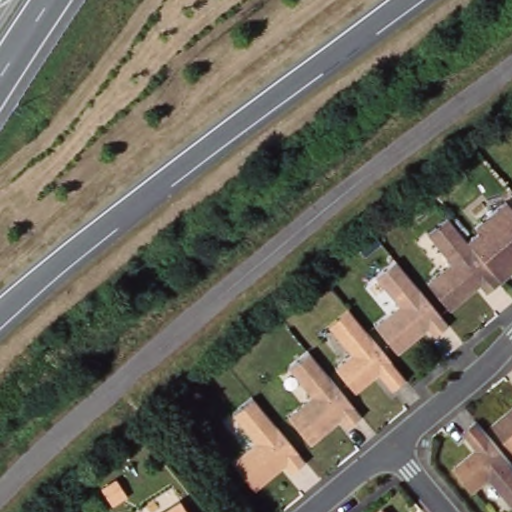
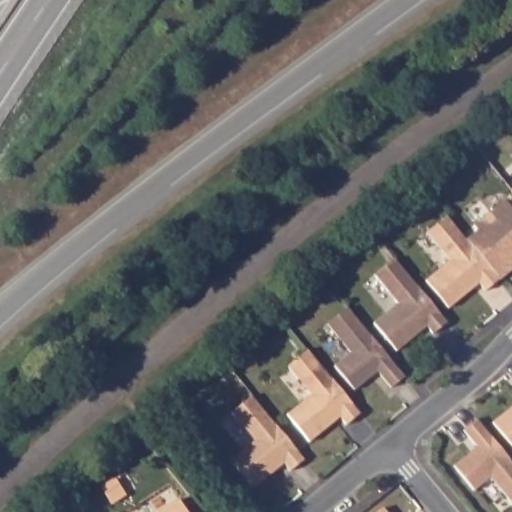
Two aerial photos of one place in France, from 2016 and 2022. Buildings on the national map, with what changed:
unchanged [(476,221),(507,199),(512,205),(512,267),(502,275),(470,236),(481,227),(476,221)]
unchanged [(454,307),(431,280),(456,260),(432,231),(452,215),(470,236),(502,275),(505,278),(491,290),(485,282),(480,285),(454,307)]
unchanged [(402,350),(380,323),(403,303),(380,274),(400,258),(408,267),(452,321),(439,332),(432,324),(428,328),(402,350)]
unchanged [(347,303),(405,372),(391,383),(377,366),(354,386),(335,362),(351,348),(327,320),(347,303)]
unchanged [(310,443),(287,416),(311,396),(287,367),(307,351),(313,358),(360,414),(346,426),(340,418),(335,421),(310,443)]
unchanged [(254,484),(231,457),(255,437),(231,409),(251,392),(296,445),(305,455),(290,467),(284,459),(280,462),(254,484)]
unchanged [(497,423),(512,411),(512,441),(497,423)]
unchanged [(482,448),(468,431),(482,420),(512,456),(512,498),(495,477),(478,491),(459,467),(482,448)]
unchanged [(195,512),(165,512),(186,499),(195,512)]
unchanged [(386,512),(378,512),(383,508),(386,512)]

